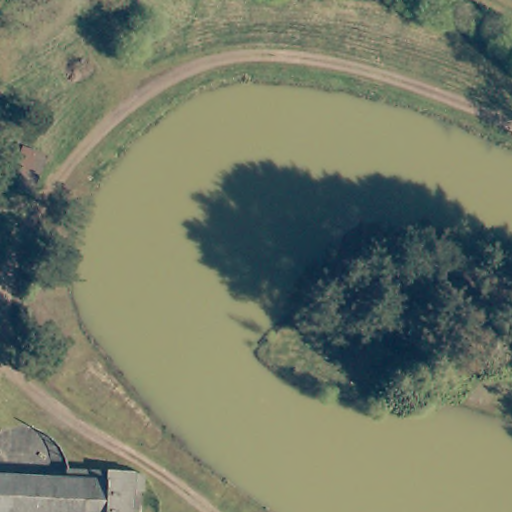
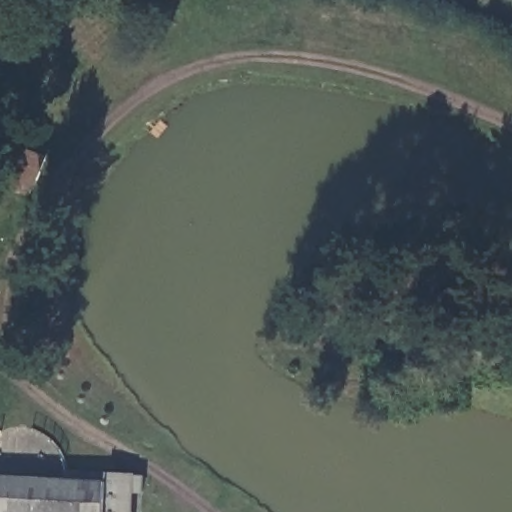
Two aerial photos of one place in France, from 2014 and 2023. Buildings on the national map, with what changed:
unchanged [(37,155),(56,166),(38,200),(19,189),(37,155)]
unchanged [(63,485),(64,477),(133,481),(144,481),(144,500),(133,500),(132,512),(0,512),(0,481),(63,485)]

